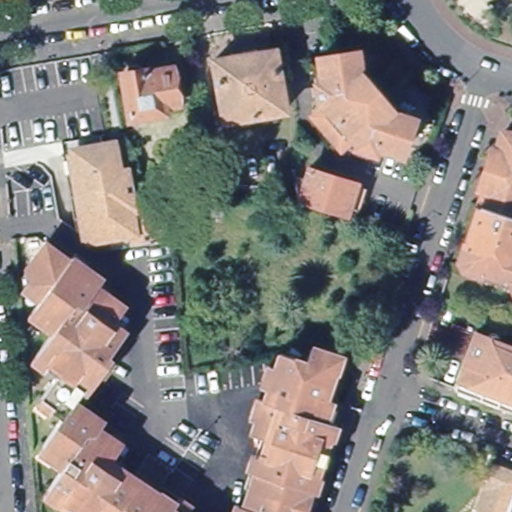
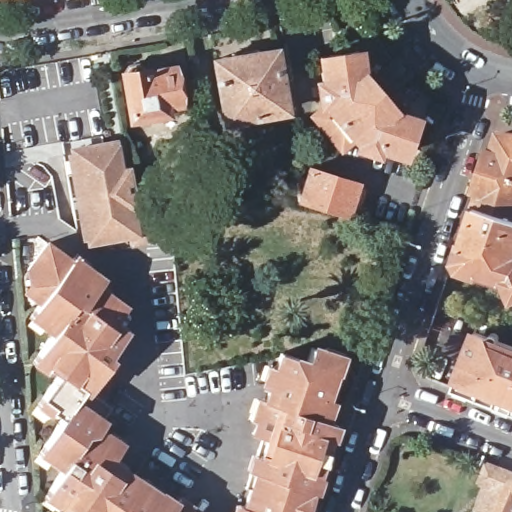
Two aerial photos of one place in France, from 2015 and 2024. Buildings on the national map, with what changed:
unchanged [(221,121),(211,63),(272,51),(282,110),(221,121)]
unchanged [(403,153),(378,144),(376,149),(360,144),(360,139),(355,138),(345,146),(318,118),(330,108),(329,104),(323,104),(320,84),(326,83),(322,58),(359,52),(362,73),(395,109),(415,116),(403,153)]
unchanged [(130,119),(122,78),(125,67),(171,60),(180,110),(130,119)]
unchanged [(479,199),(502,129),(512,129),(512,211),(479,199)]
unchanged [(81,144),(119,138),(122,163),(124,171),(131,169),(136,207),(148,204),(167,201),(171,232),(165,238),(136,242),(135,229),(95,234),(81,144)]
unchanged [(305,169),(353,184),(345,218),(296,204),(305,169)]
unchanged [(460,254),(479,199),(512,211),(512,280),(507,269),(500,268),(460,254)]
unchanged [(53,461),(50,464),(36,455),(43,446),(59,424),(47,415),(44,419),(33,412),(40,402),(55,379),(40,371),(39,374),(27,366),(33,357),(47,334),(36,327),(34,330),(21,322),(28,313),(31,308),(25,304),(17,299),(15,279),(20,270),(36,248),(65,267),(70,259),(82,268),(80,271),(95,283),(92,286),(106,295),(104,299),(120,310),(117,314),(110,327),(123,335),(117,344),(105,365),(113,371),(102,387),(99,384),(86,403),(82,399),(74,413),(105,434),(101,441),(106,444),(108,442),(126,453),(121,462),(117,469),(129,477),(125,481),(149,496),(146,500),(139,512),(67,512),(56,504),(54,509),(42,501),(47,493),(64,469),(53,461)]
unchanged [(453,334),(456,325),(481,334),(468,368),(426,353),(435,327),(453,334)]
unchanged [(512,346),(512,412),(460,392),(468,368),(481,334),(512,346)]
unchanged [(252,498),(242,494),(249,476),(254,478),(259,465),(264,467),(271,446),(257,442),(262,428),(257,427),(260,419),(256,417),(261,404),(270,407),(273,398),(270,397),(272,391),(266,389),(272,371),(281,374),(286,360),(297,364),(303,349),(320,356),(321,351),(340,357),(333,377),(327,375),(318,400),(316,407),(321,409),(325,410),(320,424),(330,427),(324,442),(320,441),(307,479),(310,481),(305,495),(302,494),(300,499),(303,501),(300,510),(291,507),(290,512),(247,512),(252,498)]
unchanged [(489,482),(482,479),(490,461),(512,470),(512,496),(506,512),(484,512),(485,509),(480,507),(489,482)]
unchanged [(146,500),(149,496),(162,504),(160,509),(165,512),(139,512),(146,500)]
unchanged [(512,496),(512,512),(506,512),(512,496)]
unchanged [(181,508),(188,512),(179,512),(181,508)]
unchanged [(237,511),(241,512),(237,512),(237,511)]

